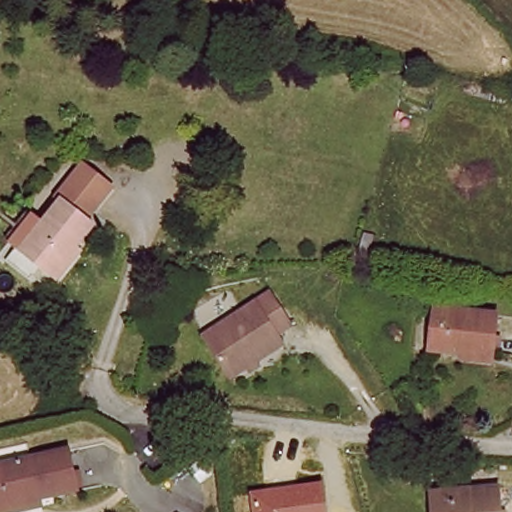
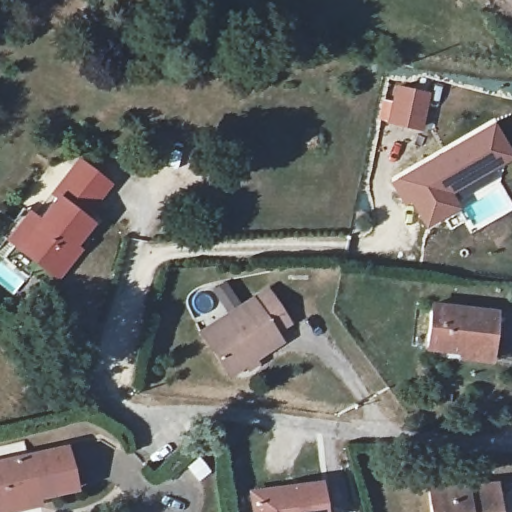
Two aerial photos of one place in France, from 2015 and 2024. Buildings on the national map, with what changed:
new [(381,97),(392,100),(395,84),(433,91),(424,133),(376,121),(381,97)]
new [(404,207),(391,185),(494,122),(512,153),(512,160),(452,194),(460,210),(426,230),(410,204),(404,207)]
unchanged [(23,215),(39,226),(58,201),(55,199),(80,166),(106,187),(85,215),(80,210),(76,215),(91,227),(73,250),(61,265),(55,261),(45,275),(17,253),(2,241),(23,215)]
unchanged [(277,292),(298,323),(285,333),(291,342),(240,377),(211,336),(277,292)]
unchanged [(459,355),(460,347),(427,343),(432,300),(495,307),(490,346),(489,358),(459,355)]
unchanged [(6,511),(5,505),(0,485),(0,462),(66,447),(75,488),(37,497),(38,505),(6,511)]
unchanged [(249,490),(321,480),(325,512),(252,512),(249,490)]
unchanged [(429,486),(495,480),(498,512),(431,512),(429,486)]
unchanged [(5,506),(6,511),(4,512),(0,512),(0,485),(5,506)]

